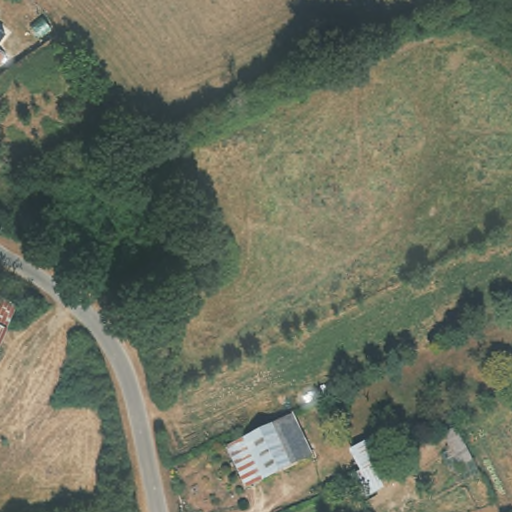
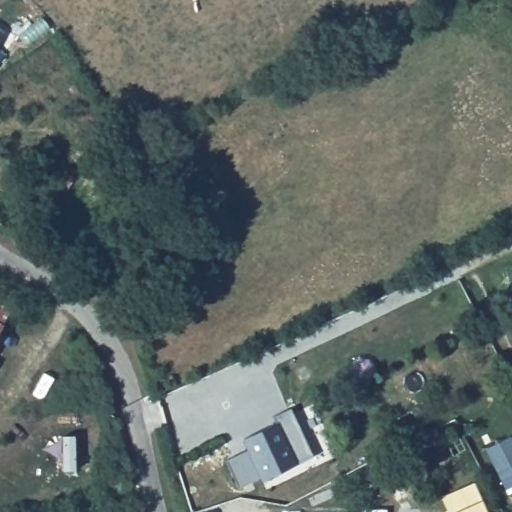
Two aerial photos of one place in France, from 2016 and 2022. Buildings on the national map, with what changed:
unchanged [(0,28),(6,32),(0,39),(0,28)]
unchanged [(0,61),(0,52),(4,55),(0,61)]
unchanged [(0,326),(0,297),(13,304),(0,326)]
unchanged [(289,410),(313,457),(265,479),(248,487),(225,443),(243,434),(289,410)]
unchanged [(351,477),(361,471),(351,449),(378,435),(392,462),(400,479),(363,500),(352,479),(351,477)]
new [(508,496),(482,449),(510,436),(512,440),(512,494),(508,496)]

